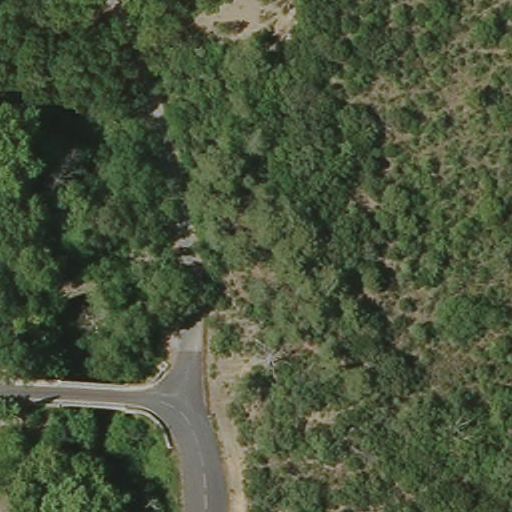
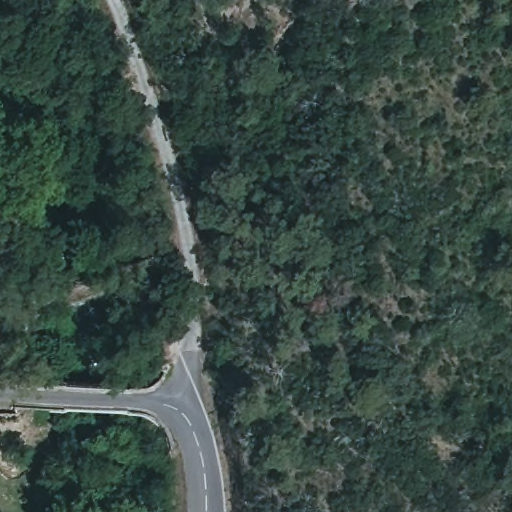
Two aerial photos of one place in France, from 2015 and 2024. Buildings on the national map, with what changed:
unchanged [(0,359),(31,359),(30,377),(0,378),(0,359)]

